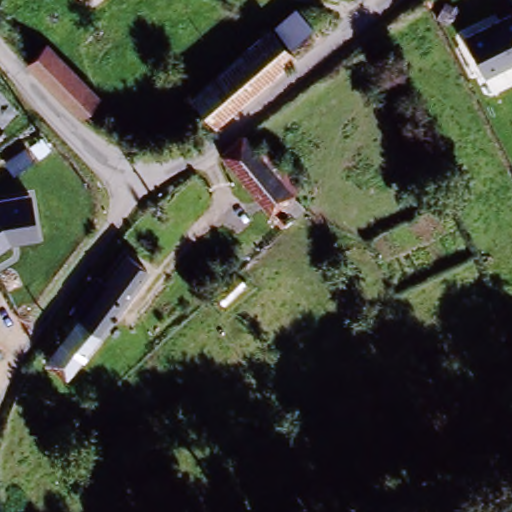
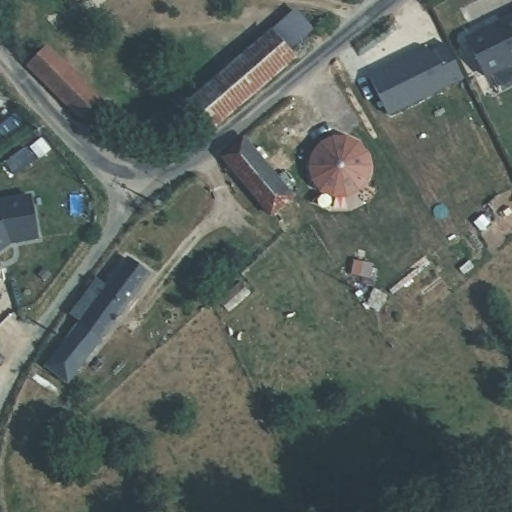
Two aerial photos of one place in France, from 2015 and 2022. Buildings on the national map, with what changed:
unchanged [(484,78),(463,39),(512,15),(512,65),(484,78)]
unchanged [(208,115),(193,94),(267,39),(298,16),(307,30),(278,53),(282,59),(208,115)]
unchanged [(53,41),(97,99),(93,103),(79,113),(35,55),(53,41)]
new [(464,81),(389,119),(369,81),(426,52),(433,56),(447,49),(464,81)]
new [(318,156),(308,139),(289,151),(274,126),(304,107),(326,146),(318,156)]
unchanged [(223,153),(246,137),(289,197),(266,214),(223,153)]
new [(351,143),(363,149),(369,161),(369,174),(363,186),(352,194),(339,196),(326,191),(317,182),(314,169),(318,156),(326,146),(339,141),(351,143)]
unchanged [(38,240),(9,245),(0,251),(0,201),(31,195),(38,240)]
unchanged [(119,257),(144,271),(136,286),(72,390),(48,374),(78,325),(66,319),(90,281),(101,287),(111,272),(119,257)]

